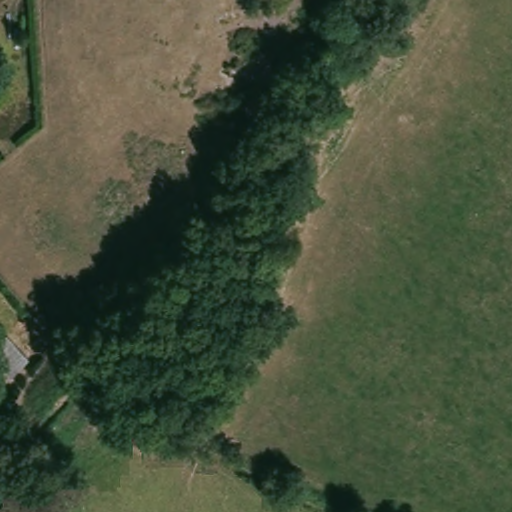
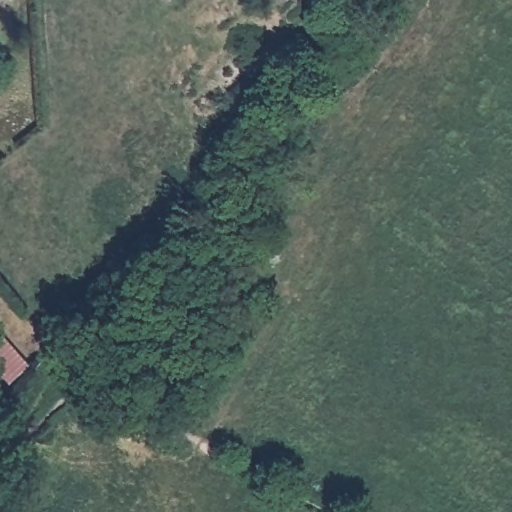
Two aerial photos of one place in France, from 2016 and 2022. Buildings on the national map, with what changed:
unchanged [(10,378),(0,361),(0,351),(16,338),(31,363),(10,378)]

